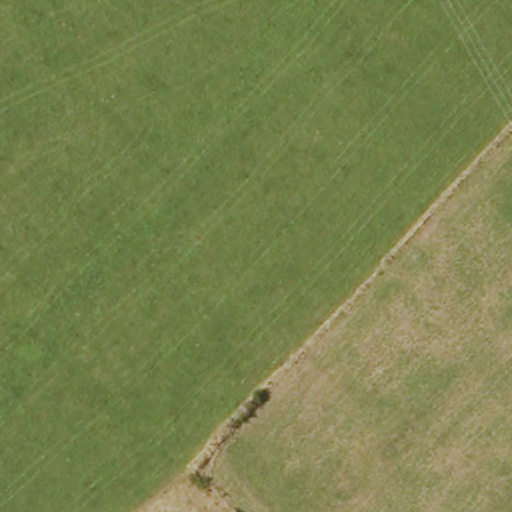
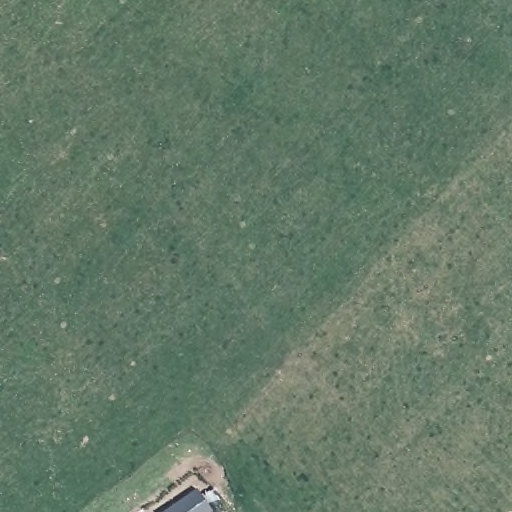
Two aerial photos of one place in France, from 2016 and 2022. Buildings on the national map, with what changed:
new [(195,492),(210,512),(209,512),(165,512),(195,492)]

